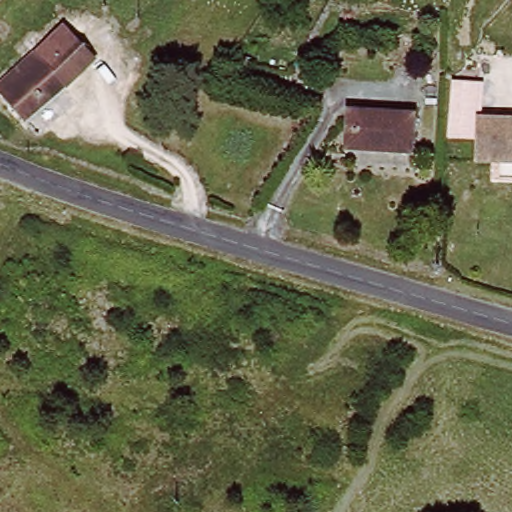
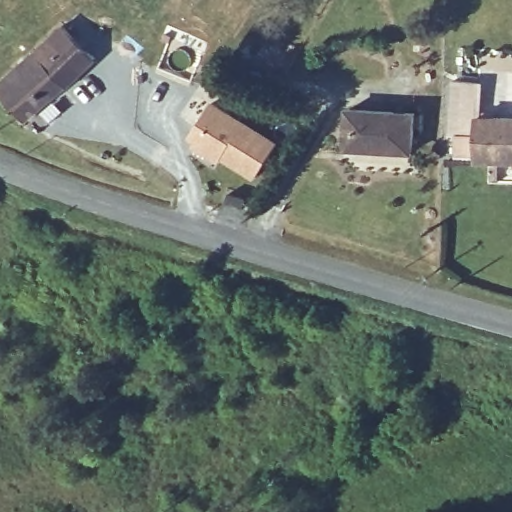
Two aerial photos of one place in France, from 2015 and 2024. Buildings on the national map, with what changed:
unchanged [(0,85),(61,26),(90,58),(20,124),(0,104),(0,85)]
new [(206,155),(194,147),(197,142),(190,138),(212,104),(276,145),(255,180),(222,159),(219,163),(206,155)]
unchanged [(343,153),(344,111),(410,113),(409,156),(343,153)]
unchanged [(475,163),(476,121),(512,122),(512,165),(475,163)]

